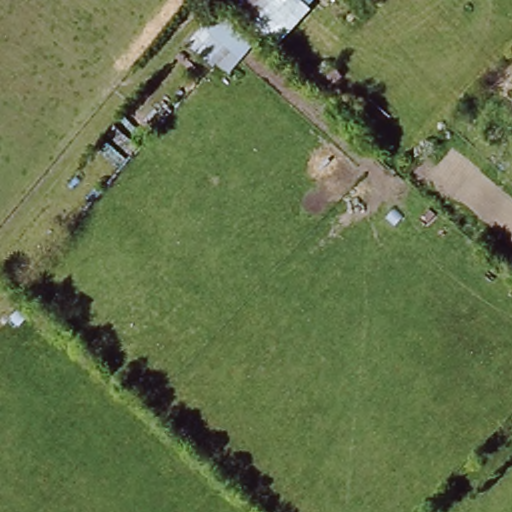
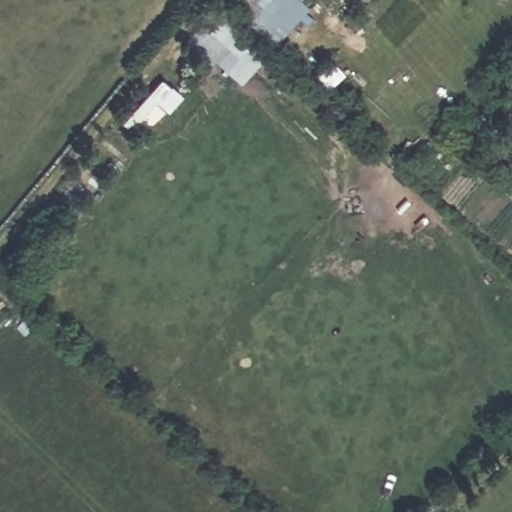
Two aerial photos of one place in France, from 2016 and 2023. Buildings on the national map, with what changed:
unchanged [(312,9),(276,46),(222,0),(314,0),(309,5),(312,9)]
unchanged [(217,62),(213,66),(186,44),(214,10),(255,43),(230,72),(217,62)]

